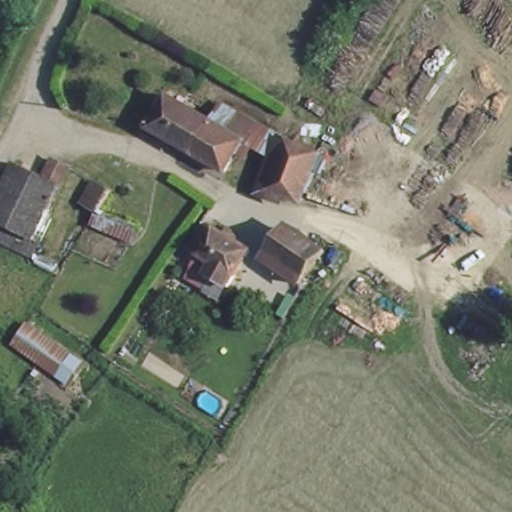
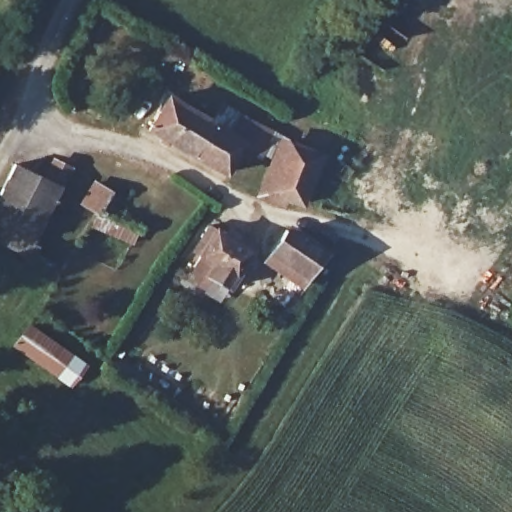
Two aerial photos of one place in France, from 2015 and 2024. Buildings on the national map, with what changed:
unchanged [(144,125),(162,95),(206,116),(188,149),(144,125)]
unchanged [(248,124),(221,167),(188,149),(206,116),(212,107),(248,124)]
unchanged [(283,191),(265,184),(285,139),(323,155),(306,200),(283,191)]
unchanged [(28,257),(0,242),(0,196),(19,159),(65,180),(28,257)]
unchanged [(94,175),(115,187),(106,209),(145,226),(135,245),(93,225),(98,214),(82,203),(94,175)]
unchanged [(211,218),(254,246),(233,281),(211,272),(212,268),(201,262),(210,249),(197,239),(211,218)]
unchanged [(321,256),(306,277),(273,252),(290,228),(321,256)]
unchanged [(89,364),(74,383),(17,349),(29,325),(89,364)]

